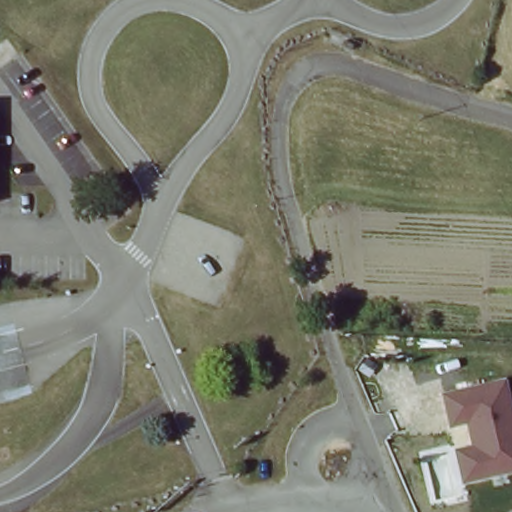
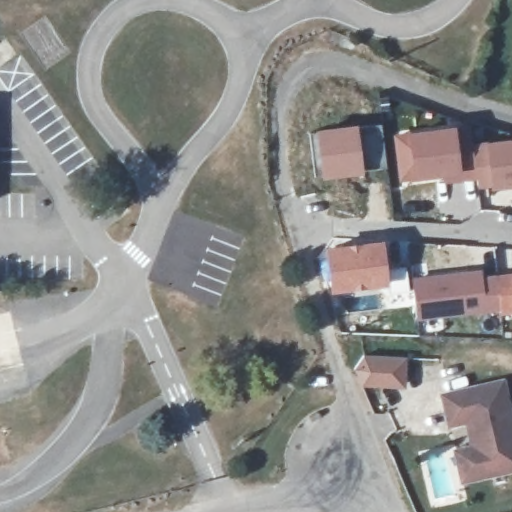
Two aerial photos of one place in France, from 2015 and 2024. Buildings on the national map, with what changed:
new [(319,179),(311,129),(359,126),(381,124),(386,168),(365,171),(365,174),(319,179)]
new [(486,143),(512,139),(512,185),(493,188),(478,190),(471,144),(486,143)]
new [(384,240),(390,278),(406,276),(408,291),(395,292),(394,286),(332,294),(325,246),(384,240)]
new [(484,270),(485,277),(512,273),(512,314),(501,317),(501,309),(418,322),(409,278),(484,270)]
new [(408,358),(405,388),(361,386),(352,370),(361,357),(408,358)]
unchanged [(451,451),(465,448),(468,447),(461,421),(445,424),(438,395),(497,381),(512,444),(512,465),(471,474),(458,478),(451,451)]

